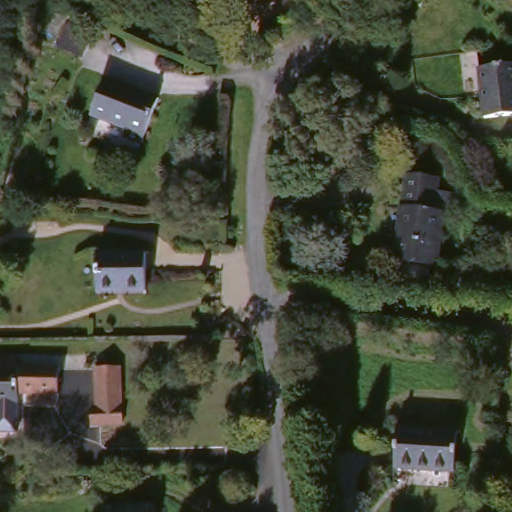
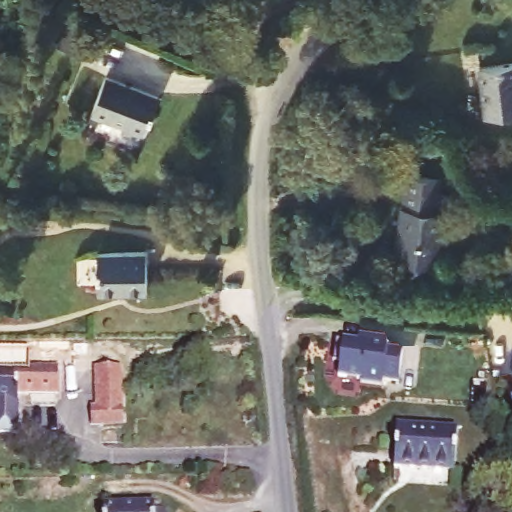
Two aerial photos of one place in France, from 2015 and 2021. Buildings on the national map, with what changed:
unchanged [(78,58),(54,50),(63,25),(88,33),(78,58)]
unchanged [(484,120),(483,99),(480,70),(512,67),(512,118),(484,120)]
unchanged [(140,147),(121,139),(124,132),(89,117),(105,79),(159,102),(140,147)]
unchanged [(406,280),(408,265),(405,265),(406,262),(415,176),(449,180),(448,192),(457,192),(454,215),(448,270),(443,269),(441,283),(406,280)]
unchanged [(146,297),(95,297),(95,256),(146,256),(146,297)]
new [(401,383),(383,382),(383,388),(359,386),(361,381),(338,377),(341,338),(358,341),(360,333),(389,338),(388,347),(403,350),(401,383)]
unchanged [(18,365),(62,366),(61,395),(20,394),(18,368),(18,365)]
unchanged [(126,423),(94,424),(93,405),(100,405),(99,367),(124,366),(126,423)]
unchanged [(0,401),(0,369),(18,368),(20,394),(20,401),(0,401)]
unchanged [(455,475),(393,472),(394,430),(457,433),(455,475)]
unchanged [(159,512),(106,512),(106,505),(159,505),(159,512)]

